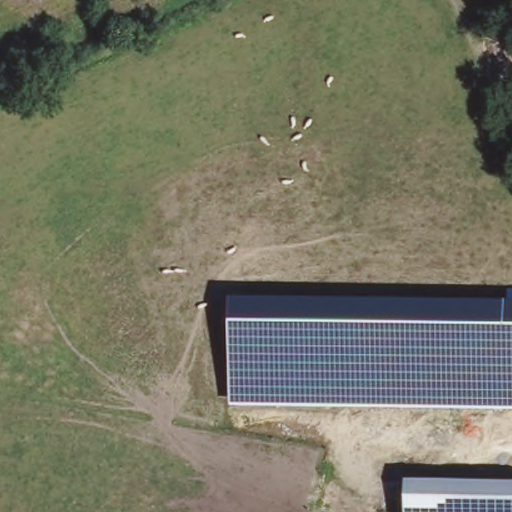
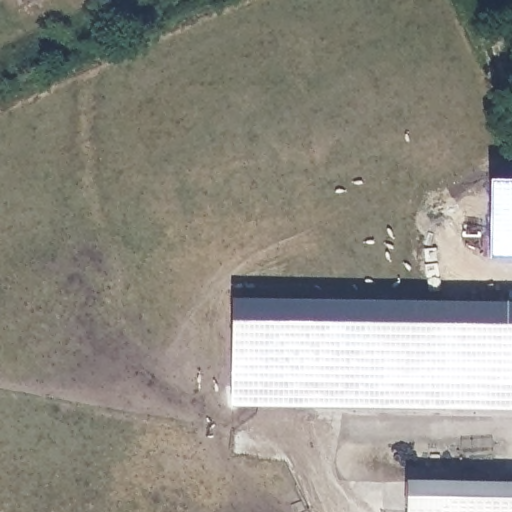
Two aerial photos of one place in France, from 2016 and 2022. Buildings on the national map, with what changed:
new [(512,180),(512,258),(489,258),(491,180),(512,180)]
unchanged [(231,405),(232,299),(512,304),(512,410),(231,405)]
unchanged [(407,512),(407,480),(512,481),(512,512),(407,512)]

